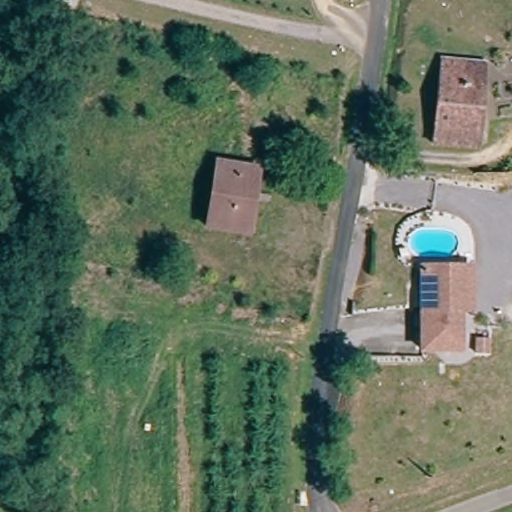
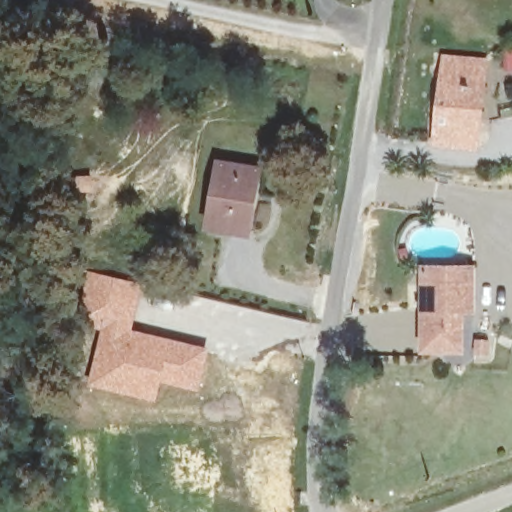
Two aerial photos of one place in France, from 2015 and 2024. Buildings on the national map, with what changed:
demolished [(507,66),(508,54),(512,54),(512,76),(506,76),(507,66)]
unchanged [(487,65),(480,151),(434,148),(441,64),(487,65)]
unchanged [(260,169),(249,235),(205,226),(216,161),(260,169)]
unchanged [(458,351),(424,351),(423,262),(458,264),(477,265),(476,312),(465,312),(459,312),(458,351)]
new [(87,269),(143,282),(132,328),(208,347),(199,391),(161,382),(156,402),(87,385),(99,328),(74,319),(87,269)]

